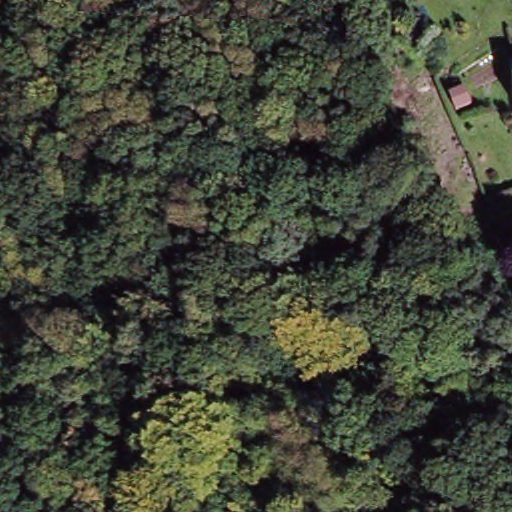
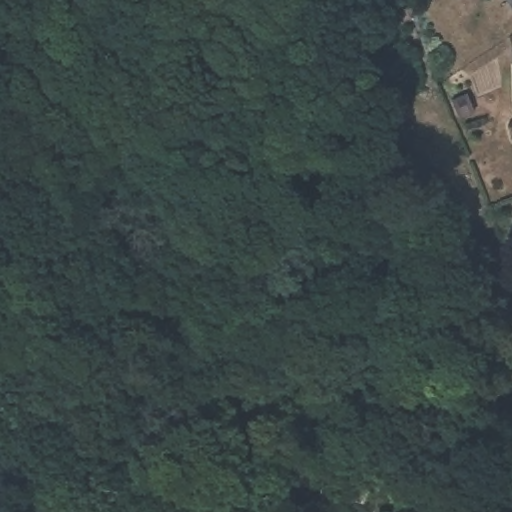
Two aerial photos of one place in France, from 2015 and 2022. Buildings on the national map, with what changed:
unchanged [(504,0),(512,0),(512,12),(504,0)]
unchanged [(466,94),(473,111),(460,116),(453,99),(466,94)]

